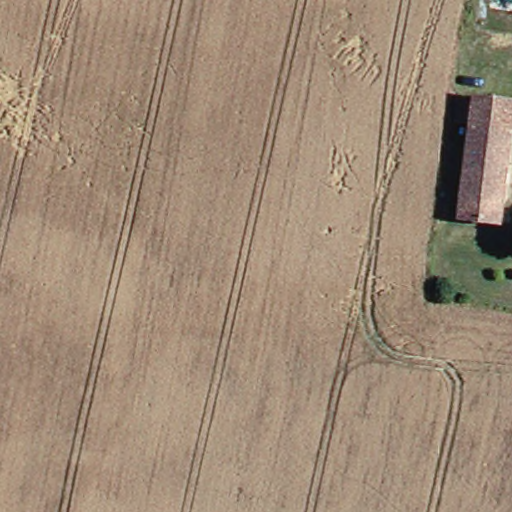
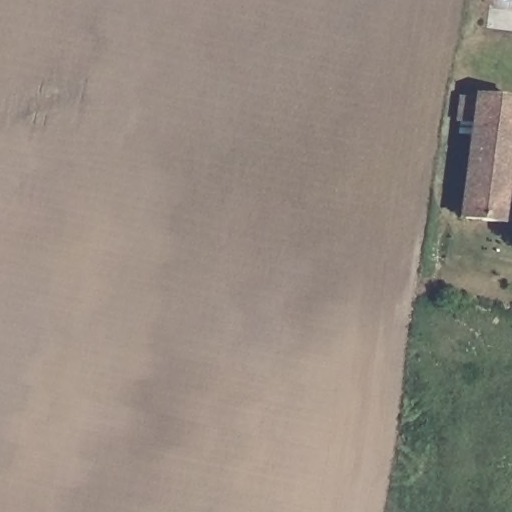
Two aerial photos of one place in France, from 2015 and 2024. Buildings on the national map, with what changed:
unchanged [(455,217),(465,128),(446,127),(447,107),(467,108),(468,97),(508,102),(506,130),(498,222),(455,217)]

